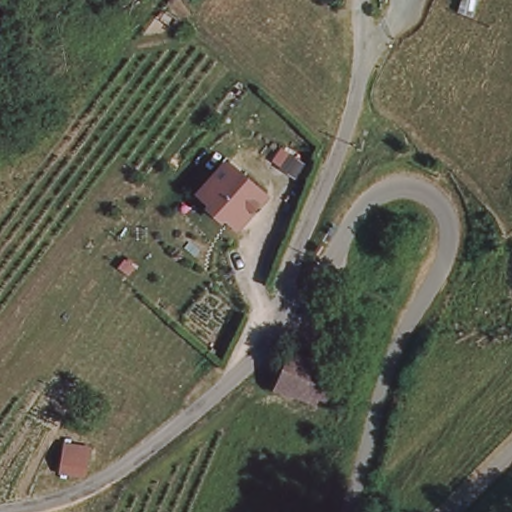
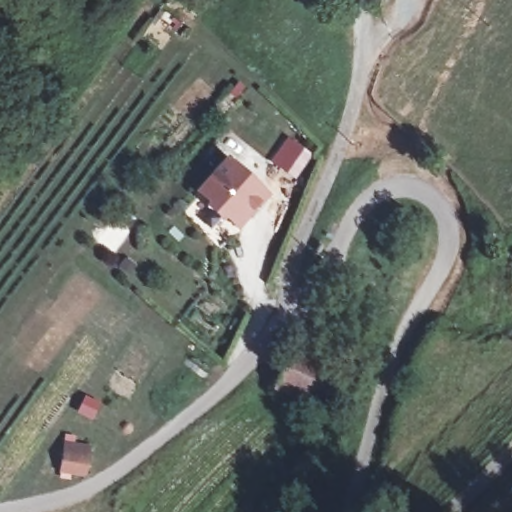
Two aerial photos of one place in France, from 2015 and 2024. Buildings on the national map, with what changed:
unchanged [(5,121),(26,96),(55,120),(35,144),(5,121)]
unchanged [(227,164),(264,195),(238,225),(228,216),(221,217),(212,210),(212,204),(202,195),(227,164)]
unchanged [(315,405),(282,392),(296,360),(297,358),(329,371),(315,405)]
unchanged [(57,478),(60,454),(92,458),(85,481),(57,478)]

